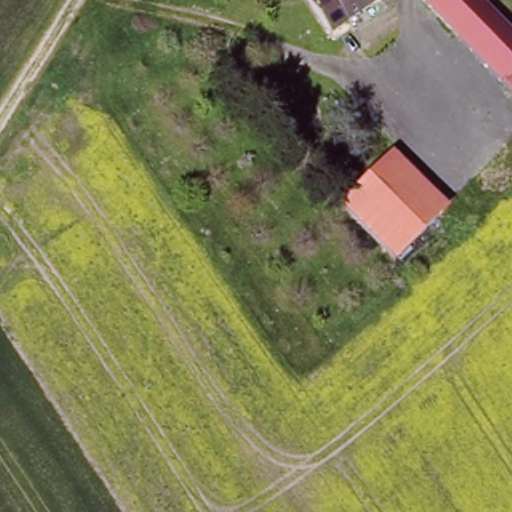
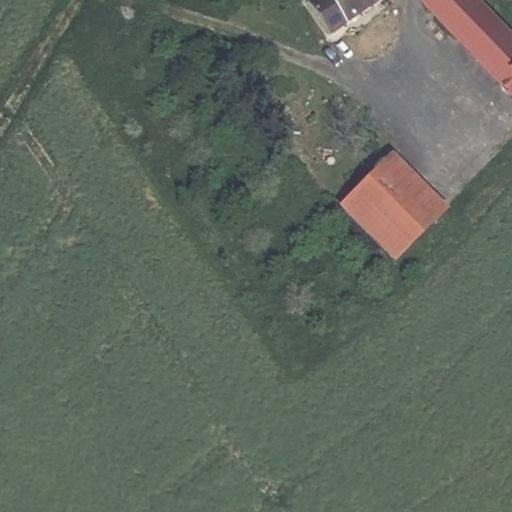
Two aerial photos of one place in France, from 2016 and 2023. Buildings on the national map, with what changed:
unchanged [(334,32),(320,21),(320,17),(319,0),(376,0),(334,32)]
unchanged [(512,87),(431,0),(481,0),(512,33),(512,87)]
unchanged [(445,205),(392,255),(340,200),(394,151),(445,205)]

